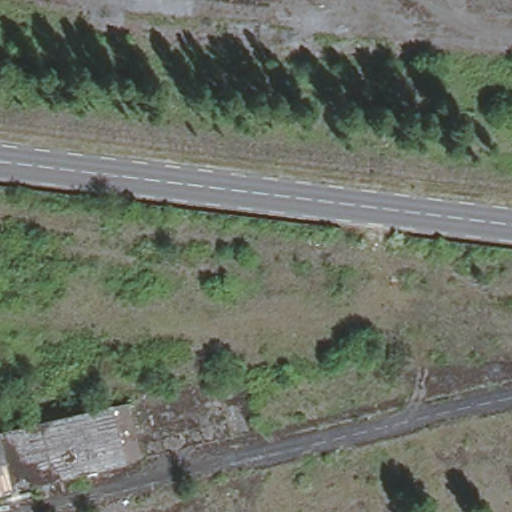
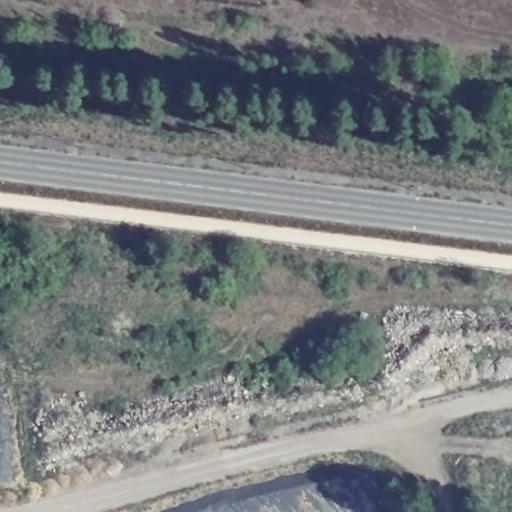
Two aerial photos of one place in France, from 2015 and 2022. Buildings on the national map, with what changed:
unchanged [(30,21),(15,19),(17,0),(32,2),(30,21)]
unchanged [(24,57),(9,55),(10,41),(26,43),(24,57)]
demolished [(0,499),(0,435),(107,410),(125,468),(0,499)]

